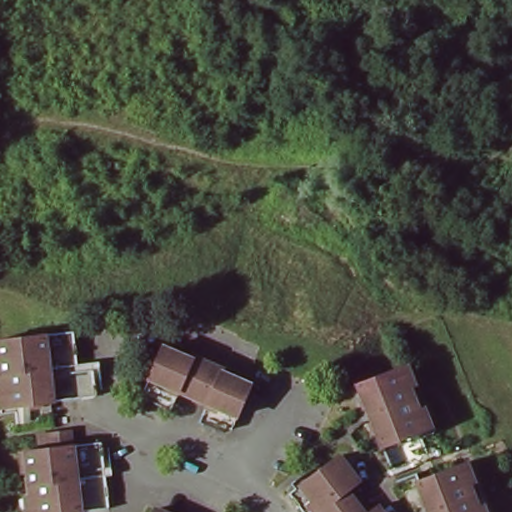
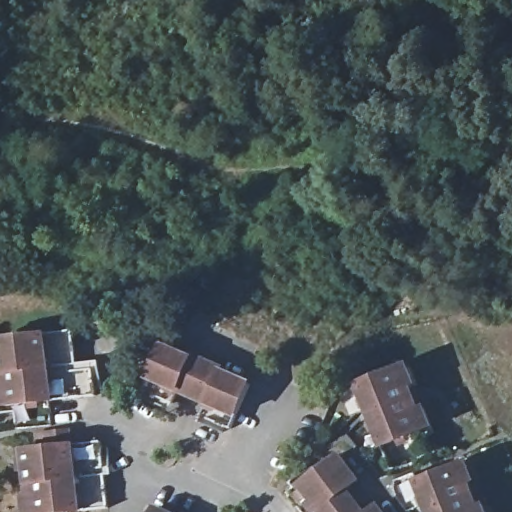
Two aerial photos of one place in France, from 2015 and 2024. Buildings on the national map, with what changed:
unchanged [(0,338),(63,330),(67,363),(82,361),(85,395),(0,405),(0,338)]
unchanged [(143,385),(162,340),(193,352),(194,350),(222,363),(222,365),(251,377),(231,424),(202,411),(207,397),(179,385),(173,398),(143,385)]
unchanged [(402,365),(427,428),(382,446),(357,383),(402,365)]
unchanged [(108,507),(67,512),(34,512),(26,450),(40,448),(39,433),(70,430),(72,445),(100,441),(108,507)]
unchanged [(312,512),(293,488),(344,449),(364,475),(352,485),(371,509),(383,500),(392,512),(329,512),(325,505),(316,512),(312,512)]
unchanged [(461,463),(480,512),(429,512),(417,480),(461,463)]
unchanged [(179,512),(151,512),(155,502),(179,512)]

